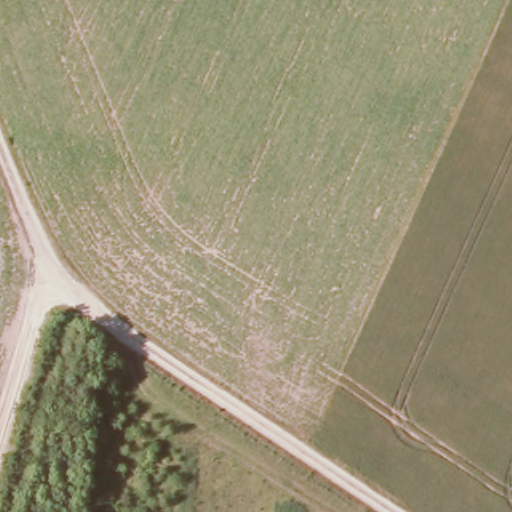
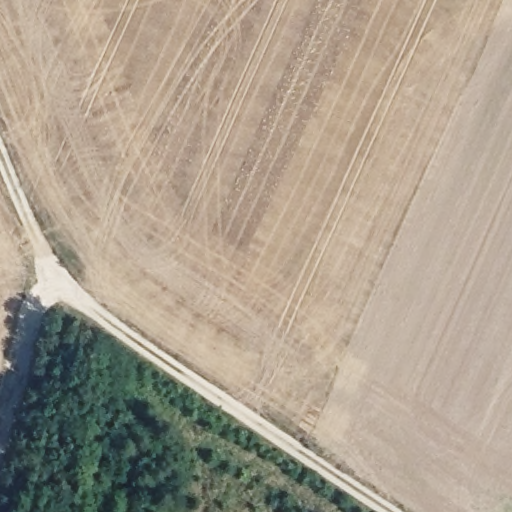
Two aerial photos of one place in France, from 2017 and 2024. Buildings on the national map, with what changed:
[]

